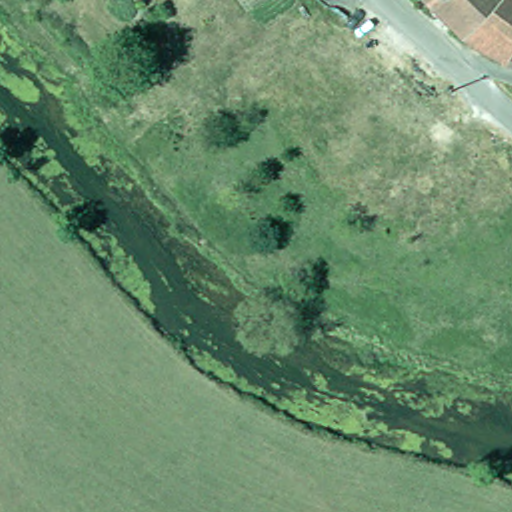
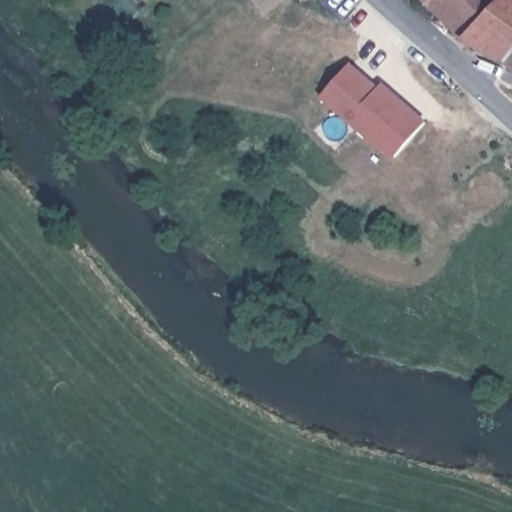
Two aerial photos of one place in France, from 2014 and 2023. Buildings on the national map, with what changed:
unchanged [(499,53),(458,31),(427,0),(512,0),(512,36),(499,53)]
unchanged [(499,53),(512,36),(512,61),(499,53)]
new [(349,66),(377,91),(379,89),(399,106),(401,104),(424,124),(394,158),(371,138),(370,140),(321,98),(349,66)]

